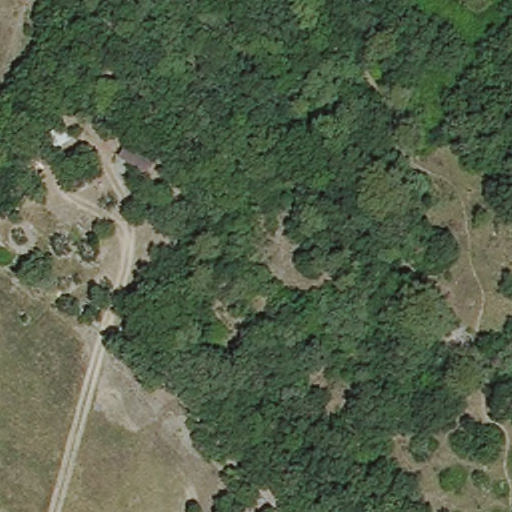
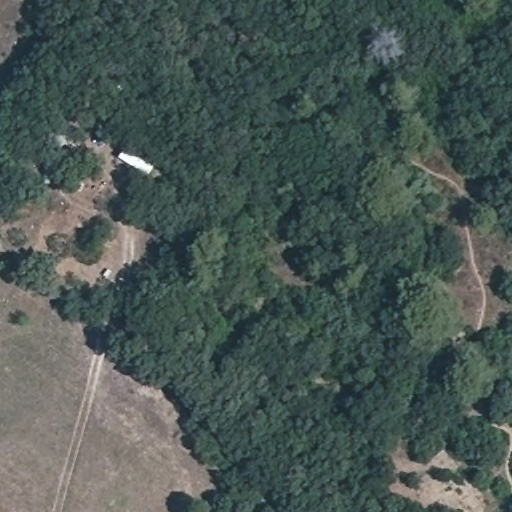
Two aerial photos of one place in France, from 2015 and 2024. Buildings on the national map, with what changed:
unchanged [(147,178),(119,159),(134,136),(162,156),(147,178)]

